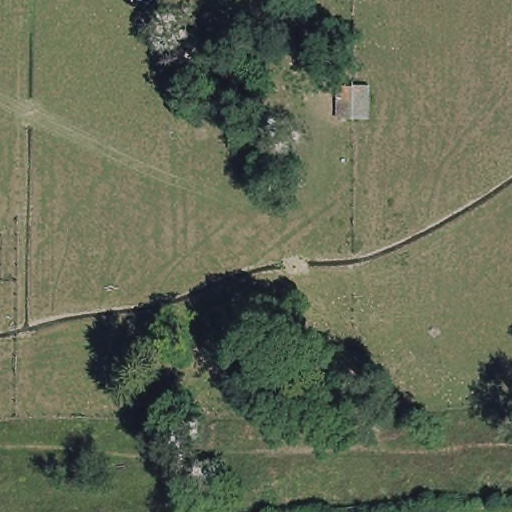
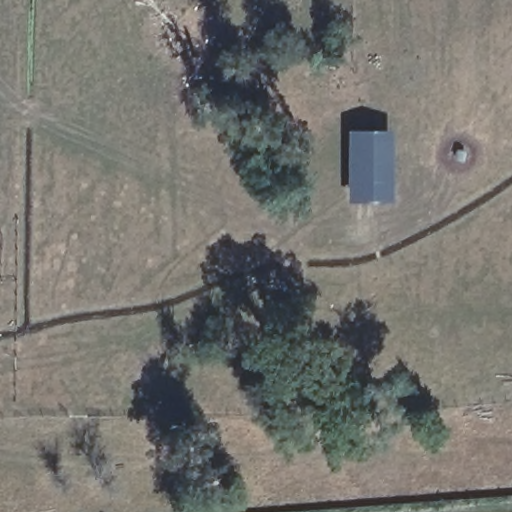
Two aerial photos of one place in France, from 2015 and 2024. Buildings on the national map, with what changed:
demolished [(372,82),(368,112),(332,114),(333,80),(372,82)]
new [(390,200),(351,201),(350,135),(391,134),(390,200)]

